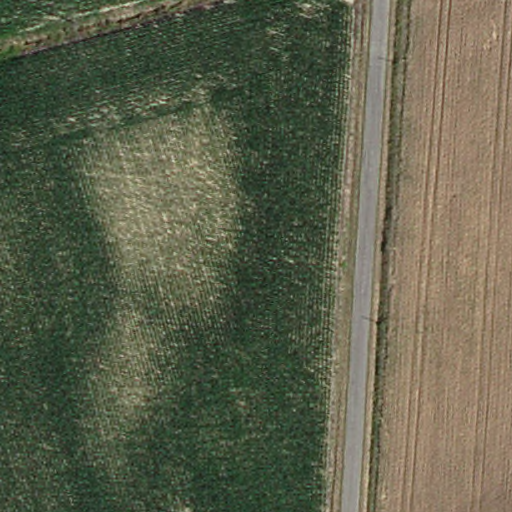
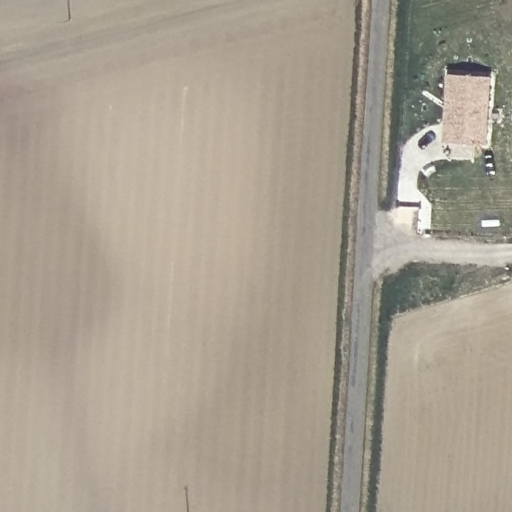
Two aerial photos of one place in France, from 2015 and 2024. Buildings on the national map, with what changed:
new [(450,73),(493,77),(489,145),(445,141),(450,73)]

